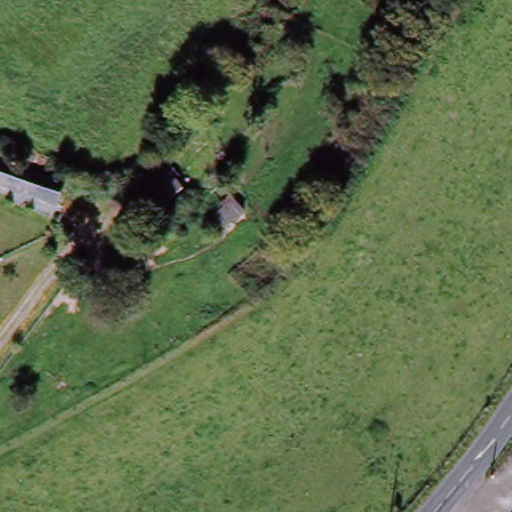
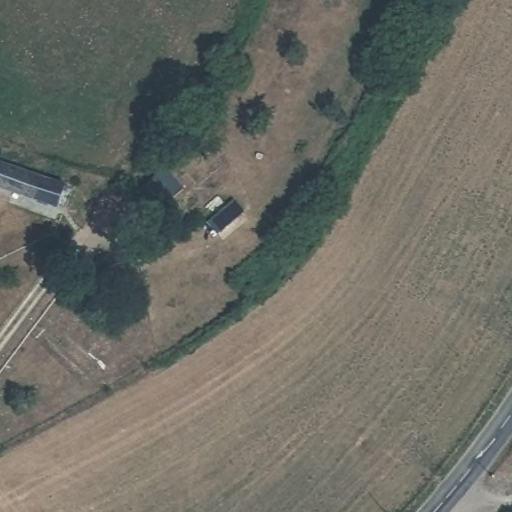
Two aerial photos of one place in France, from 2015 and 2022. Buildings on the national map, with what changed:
unchanged [(62,175),(52,202),(0,185),(0,153),(62,175)]
unchanged [(126,212),(111,196),(147,158),(162,174),(126,212)]

